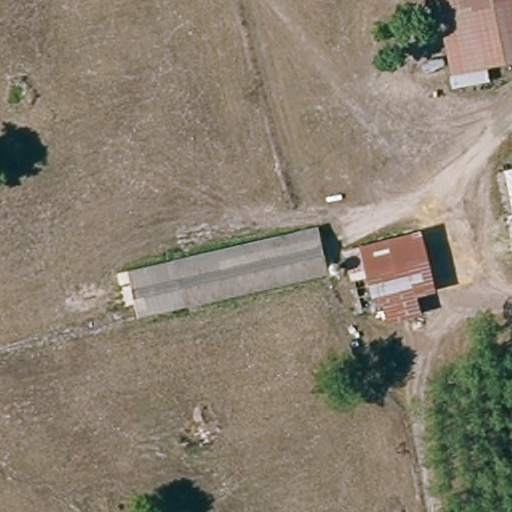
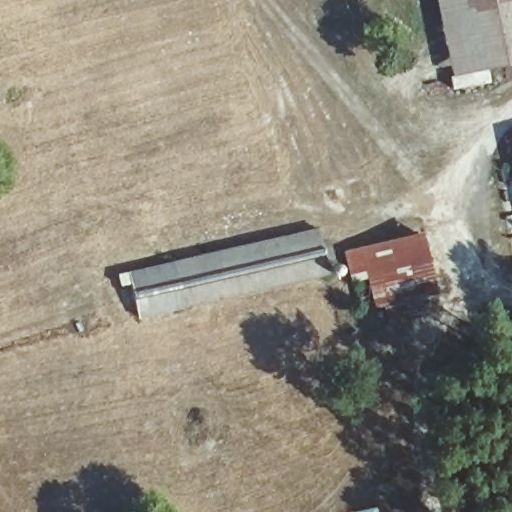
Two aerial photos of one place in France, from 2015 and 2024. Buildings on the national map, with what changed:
unchanged [(468,6),(437,15),(434,0),(466,0),(468,6)]
unchanged [(437,15),(468,6),(492,0),(512,0),(512,57),(453,74),(437,15)]
unchanged [(468,6),(466,0),(492,0),(468,6)]
unchanged [(129,271),(312,225),(320,223),(330,269),(325,270),(140,318),(129,271)]
unchanged [(420,229),(433,290),(361,306),(346,246),(420,229)]

